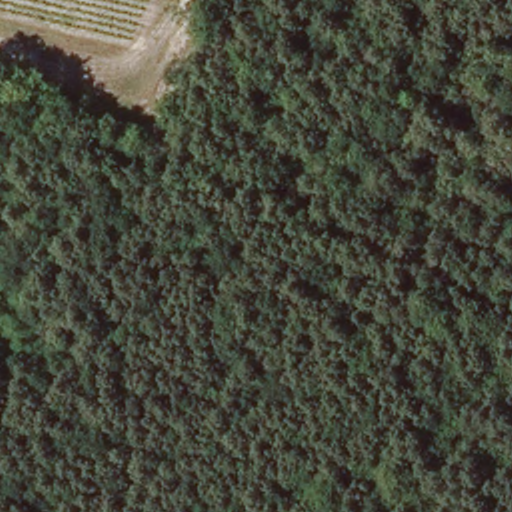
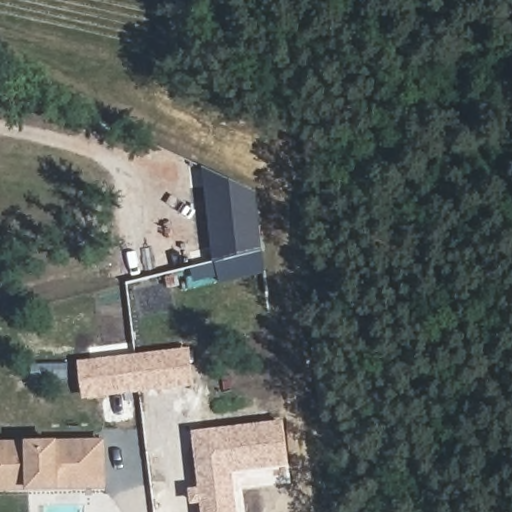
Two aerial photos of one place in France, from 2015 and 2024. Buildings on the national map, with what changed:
new [(255,190),(261,248),(214,257),(204,166),(255,190)]
new [(83,400),(78,360),(191,347),(196,385),(83,400)]
new [(206,415),(206,448),(145,447),(145,418),(206,415)]
new [(201,505),(190,505),(188,489),(199,487),(192,431),(283,420),(289,465),(234,473),(237,512),(201,512),(201,505)]
new [(103,486),(0,490),(0,442),(101,438),(103,486)]

